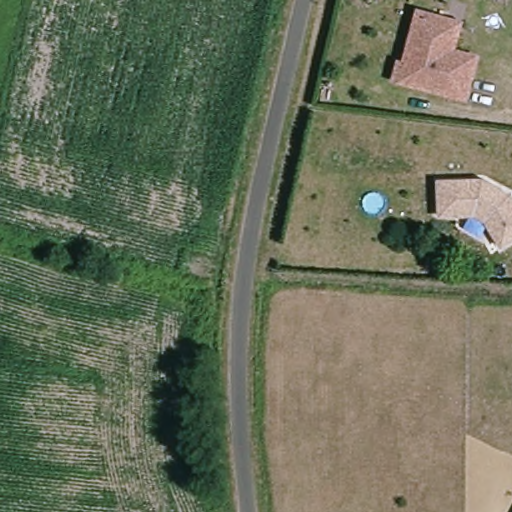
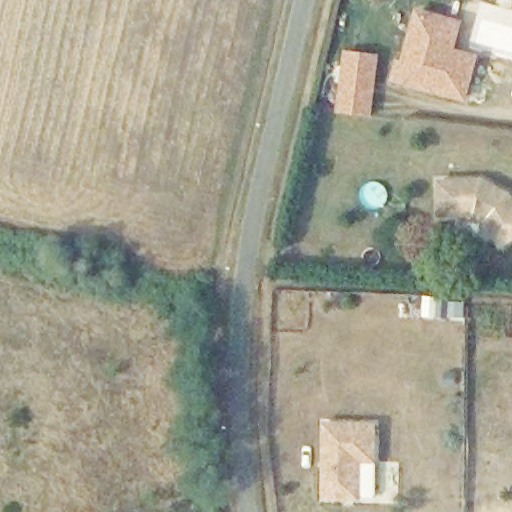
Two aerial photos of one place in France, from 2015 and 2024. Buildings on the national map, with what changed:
unchanged [(464,102),(394,84),(398,67),(404,68),(416,16),(445,23),(458,26),(451,58),(474,64),(464,102)]
new [(336,111),(344,50),(378,55),(371,117),(336,111)]
unchanged [(475,215),(438,215),(438,180),(483,180),(510,195),(512,199),(512,239),(500,245),(484,220),(475,215)]
new [(378,423),(377,465),(360,464),(359,501),(322,500),(322,422),(378,423)]

